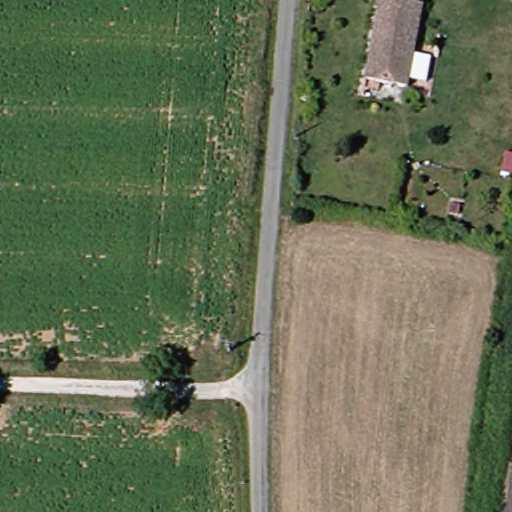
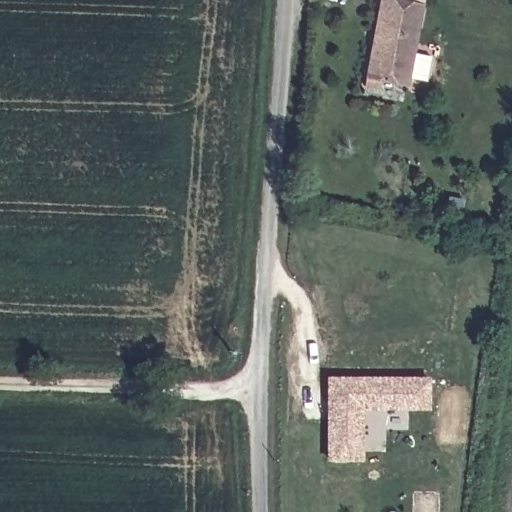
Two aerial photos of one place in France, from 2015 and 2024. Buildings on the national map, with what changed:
unchanged [(375,0),(417,9),(403,87),(360,80),(375,0)]
new [(326,376),(430,377),(430,411),(363,411),(362,461),(327,462),(326,376)]

